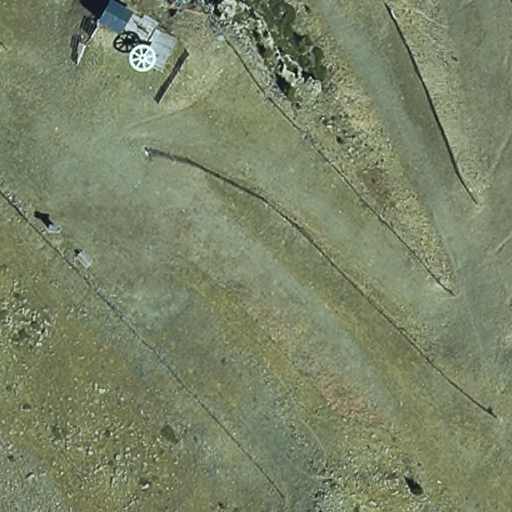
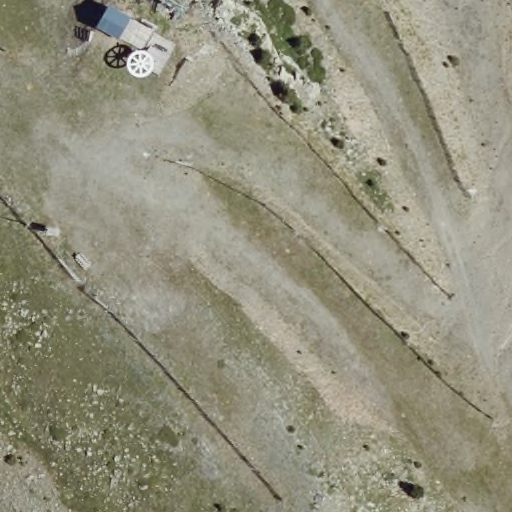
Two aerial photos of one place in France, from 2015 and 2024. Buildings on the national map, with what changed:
unchanged [(133,15),(121,39),(97,27),(109,4),(133,15)]

